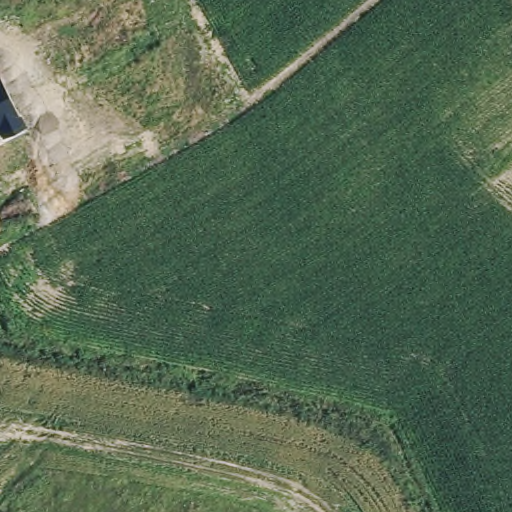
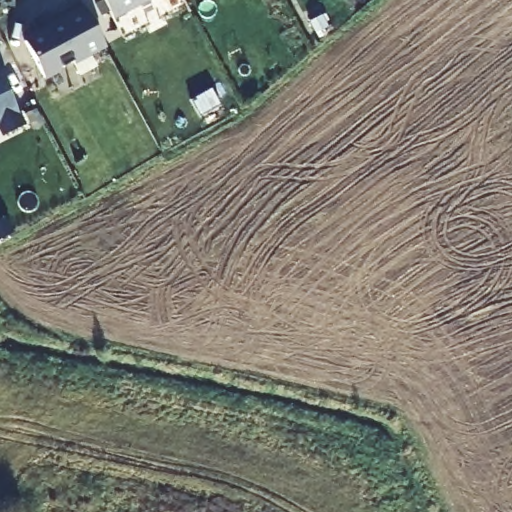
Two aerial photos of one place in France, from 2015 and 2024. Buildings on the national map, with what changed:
new [(99,0),(145,0),(109,20),(99,0)]
new [(40,28),(40,30),(51,24),(50,21),(80,5),(100,43),(38,75),(20,39),(40,28)]
unchanged [(0,132),(0,72),(26,125),(2,137),(0,132)]

